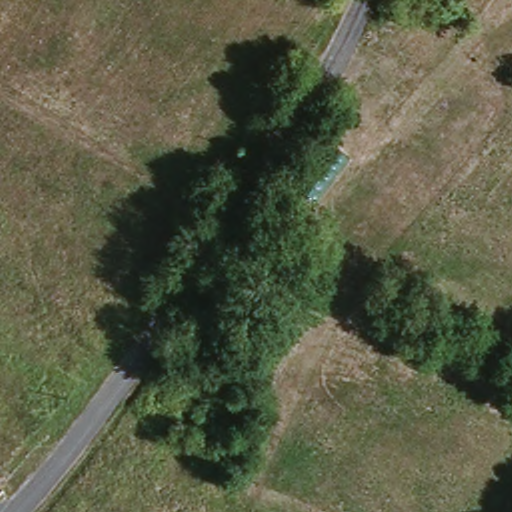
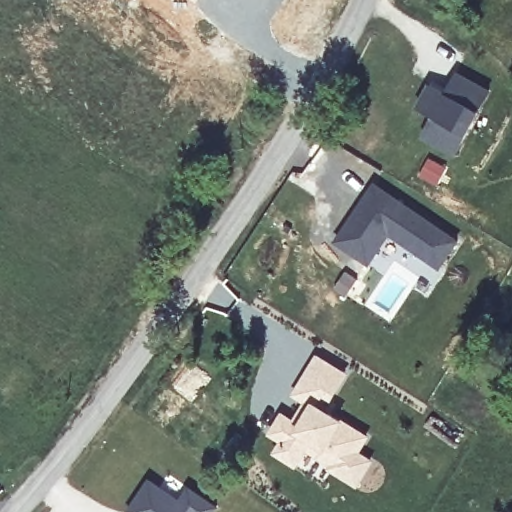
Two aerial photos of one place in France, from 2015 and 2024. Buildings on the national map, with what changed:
new [(196,2),(193,0),(198,0),(196,2)]
new [(428,81),(444,89),(455,69),(492,89),(454,158),(418,138),(429,118),(413,109),(428,81)]
new [(362,204),(375,184),(459,240),(440,268),(389,233),(369,264),(336,242),(355,215),(362,204)]
new [(280,410),(293,417),(300,404),(288,396),(316,351),(349,372),(329,407),(372,435),(363,450),(376,459),(357,488),(307,454),(296,470),(269,453),(277,442),(264,434),(280,410)]
new [(178,497),(187,484),(220,506),(216,512),(125,512),(148,477),(178,497)]

